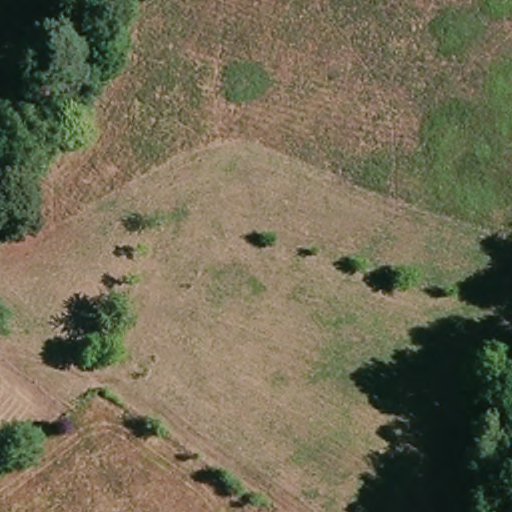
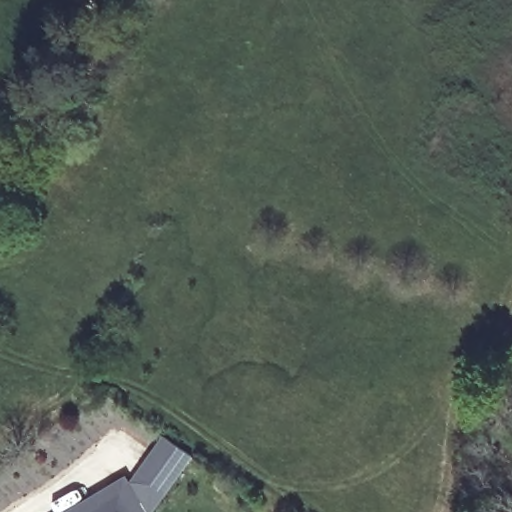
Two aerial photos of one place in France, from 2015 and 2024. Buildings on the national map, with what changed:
new [(126,476),(130,483),(165,434),(193,456),(153,512),(65,512),(126,476)]

